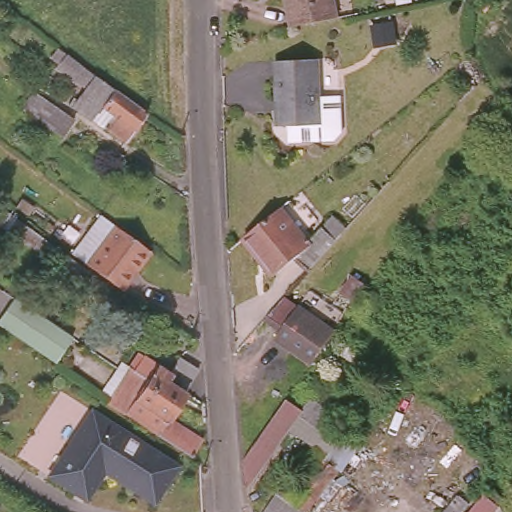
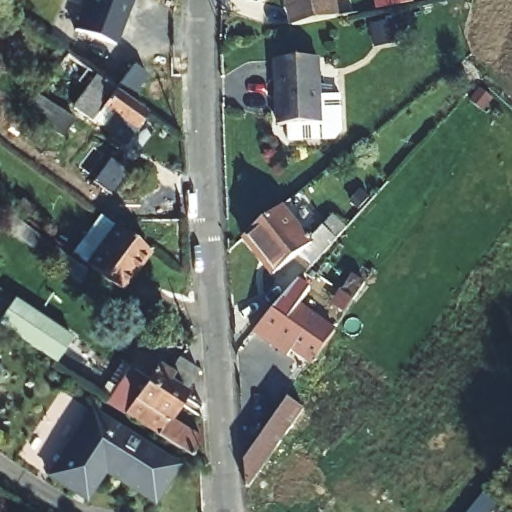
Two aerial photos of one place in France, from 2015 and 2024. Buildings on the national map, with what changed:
new [(114,45),(75,31),(86,0),(130,0),(114,45)]
unchanged [(332,14),(286,23),(282,0),(330,0),(332,14)]
unchanged [(492,4),(485,11),(478,5),(482,0),(487,0),(492,4)]
unchanged [(312,44),(317,81),(337,78),(341,99),(342,113),(337,121),(292,128),(290,113),(280,115),(280,113),(270,50),(312,44)]
unchanged [(150,112),(128,141),(77,104),(82,97),(85,98),(91,89),(82,81),(80,84),(59,68),(64,63),(55,56),(62,46),(150,112)]
unchanged [(81,119),(68,136),(27,107),(41,88),(81,119)]
unchanged [(312,252),(288,280),(272,262),(264,268),(249,244),(241,249),(228,228),(266,201),(291,239),(296,235),(312,252)]
unchanged [(119,284),(87,261),(115,223),(122,228),(148,247),(119,284)]
unchanged [(315,365),(314,366),(309,362),(278,340),(284,330),(269,318),(288,297),(332,329),(337,332),(315,365)]
unchanged [(60,360),(0,321),(0,318),(14,299),(75,339),(60,360)]
unchanged [(165,375),(171,379),(152,408),(182,426),(182,452),(107,403),(130,370),(117,361),(123,352),(117,348),(124,339),(154,360),(165,346),(177,354),(165,375)]
unchanged [(365,382),(360,389),(353,383),(358,377),(359,377),(365,382)]
unchanged [(351,445),(331,471),(339,479),(338,480),(329,492),(322,502),(317,499),(314,496),(305,509),(302,512),(272,512),(262,504),(270,494),(267,492),(274,484),(289,495),(304,474),(300,471),(304,467),(307,470),(319,455),(285,429),(249,478),(242,487),(241,484),(240,465),(240,455),(257,432),(279,402),(282,396),(297,406),(305,396),(308,392),(330,408),(331,406),(334,409),(323,424),(351,445)]
unchanged [(74,489),(51,474),(94,409),(181,467),(157,503),(105,468),(86,497),(74,489)]
unchanged [(471,504),(466,512),(438,512),(456,490),(471,504)]

